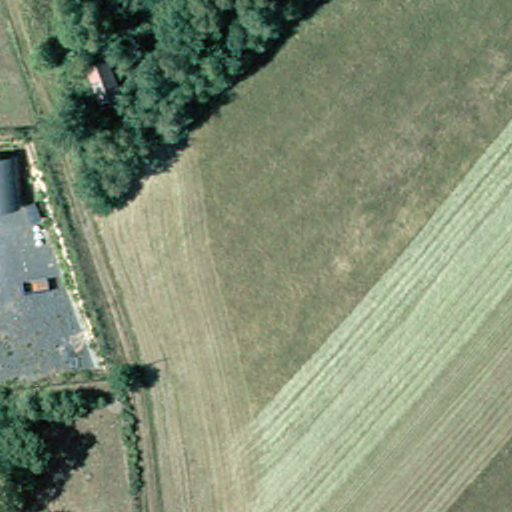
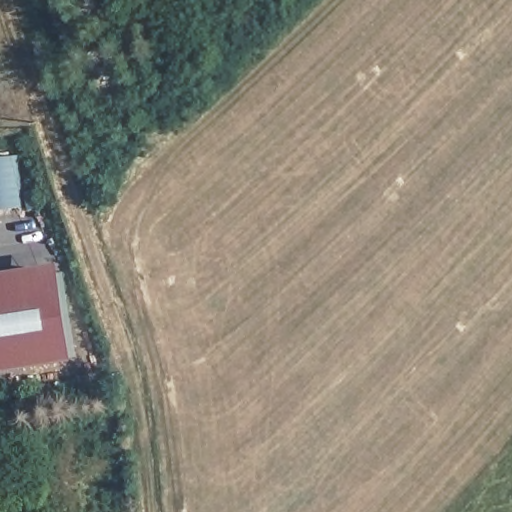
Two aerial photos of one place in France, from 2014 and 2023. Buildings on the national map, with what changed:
unchanged [(18,207),(0,207),(0,156),(15,156),(18,207)]
new [(68,357),(0,362),(0,277),(60,272),(68,357)]

